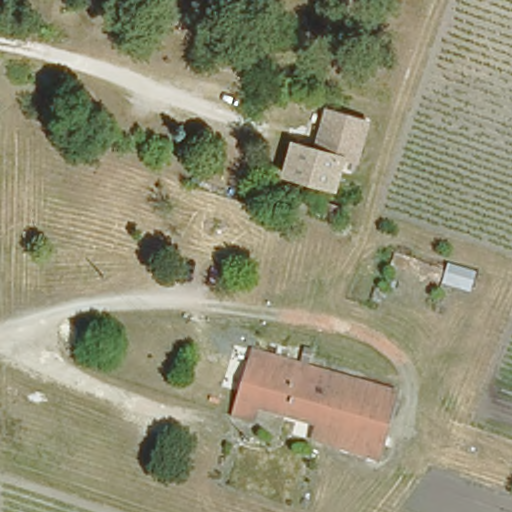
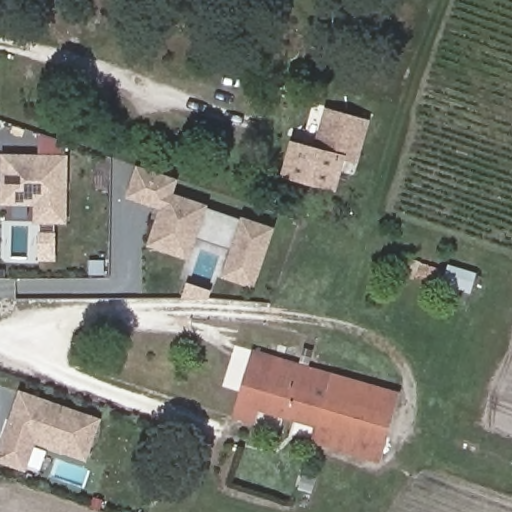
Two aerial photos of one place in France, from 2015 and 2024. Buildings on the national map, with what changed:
unchanged [(362,119),(359,129),(350,157),(349,157),(336,153),(335,154),(326,183),(279,168),(289,137),(311,144),(323,106),(362,119)]
new [(32,222),(33,205),(0,205),(0,179),(0,153),(66,155),(65,222),(32,222)]
new [(124,198),(134,165),(176,179),(173,194),(206,204),(205,209),(238,219),(239,216),(273,226),(253,288),(220,277),(228,248),(196,237),(189,259),(146,245),(157,208),(124,198)]
unchanged [(234,409),(253,341),(395,383),(387,413),(376,450),(320,434),(315,431),(315,419),(278,407),(274,421),(260,417),(234,409)]
new [(0,462),(0,443),(18,390),(100,418),(85,461),(33,443),(24,470),(0,462)]

